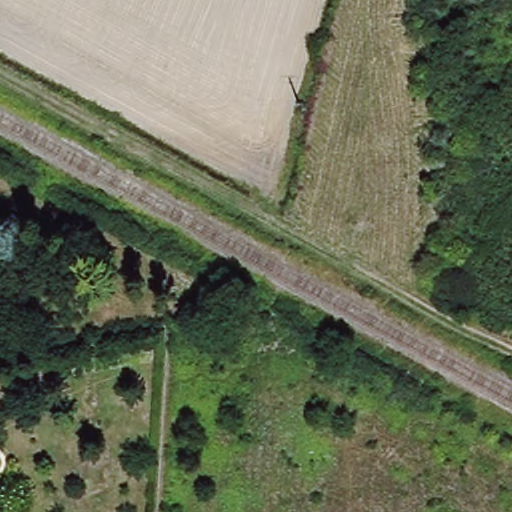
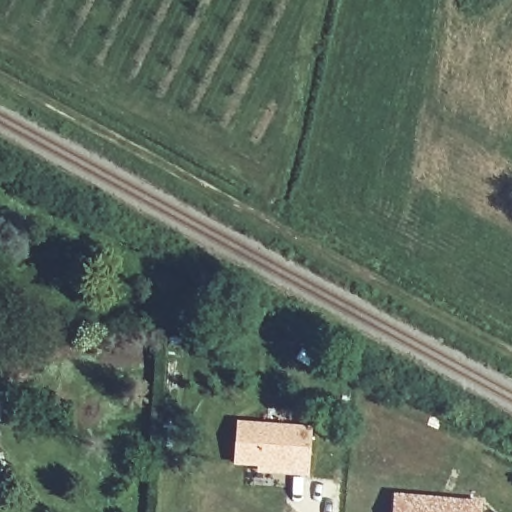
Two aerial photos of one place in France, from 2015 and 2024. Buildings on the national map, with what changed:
new [(236,419),(312,426),(308,477),(256,470),(256,468),(232,465),(236,419)]
new [(397,497),(480,504),(479,512),(396,512),(397,497)]

